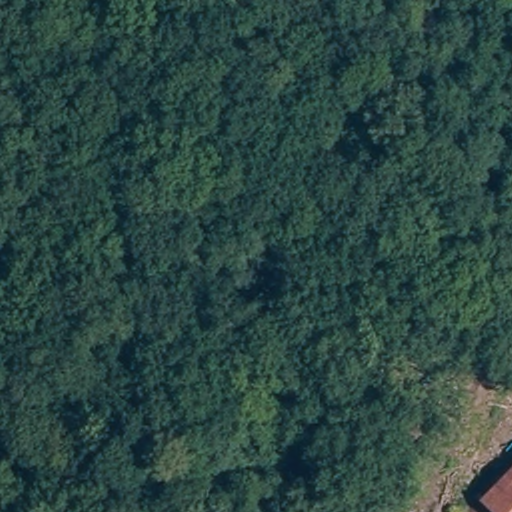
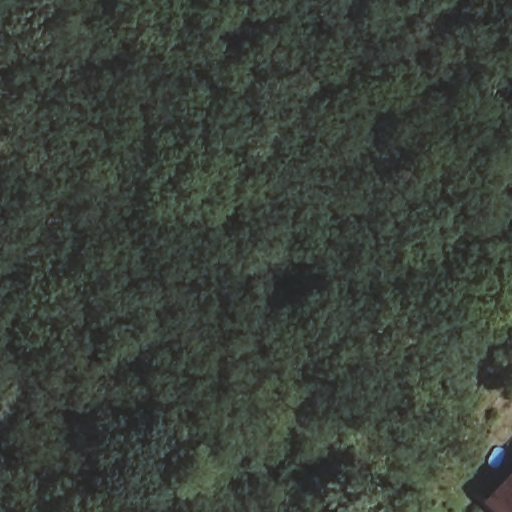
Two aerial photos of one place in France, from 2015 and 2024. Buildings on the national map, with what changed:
unchanged [(494,512),(482,500),(512,468),(512,512),(494,512)]

